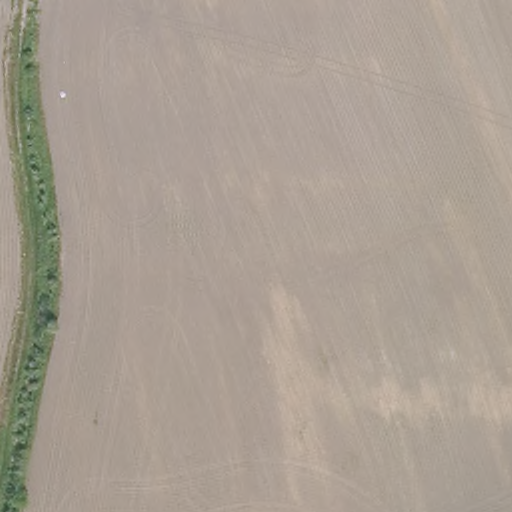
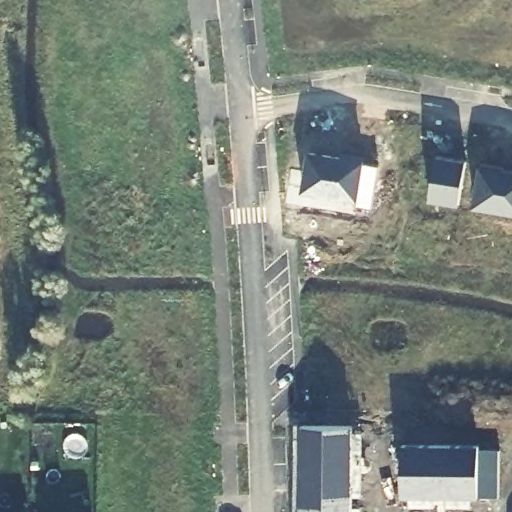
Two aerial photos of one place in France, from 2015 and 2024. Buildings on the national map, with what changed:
new [(359,201),(303,192),(310,150),(365,160),(359,201)]
new [(459,205),(429,200),(437,154),(468,159),(459,205)]
new [(481,163),(512,168),(512,214),(474,207),(481,163)]
new [(300,512),(301,423),(354,423),(352,512),(300,512)]
new [(500,496),(477,495),(403,496),(405,445),(480,446),(501,447),(500,496)]

